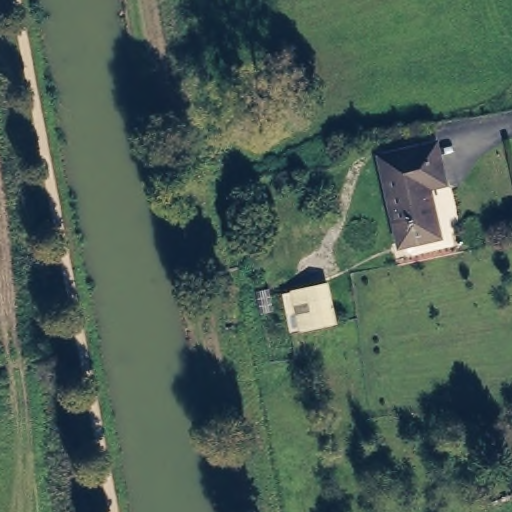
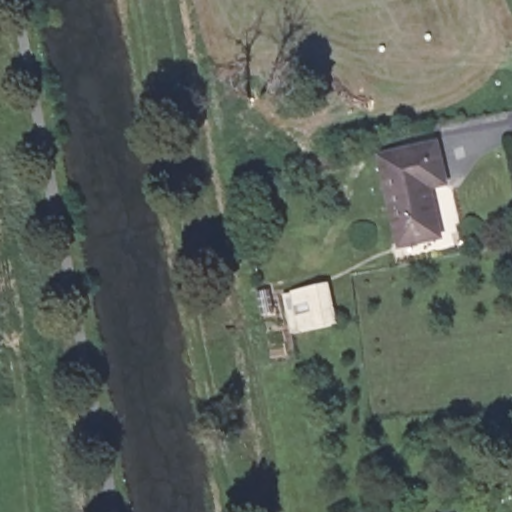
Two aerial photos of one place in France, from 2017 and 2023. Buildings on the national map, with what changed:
unchanged [(432,147),(441,185),(426,189),(436,237),(399,247),(380,159),(432,147)]
unchanged [(287,294),(320,287),(330,324),(295,332),(287,294)]

